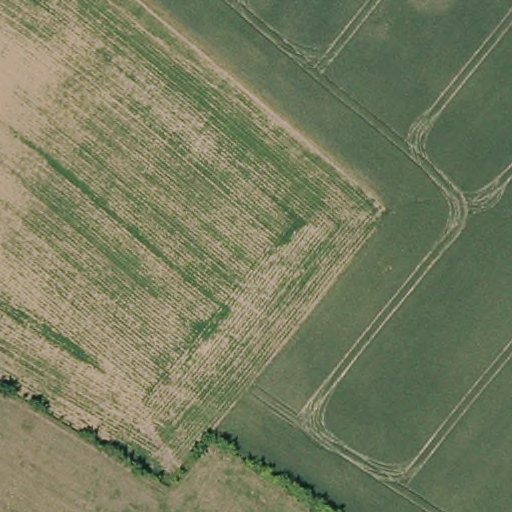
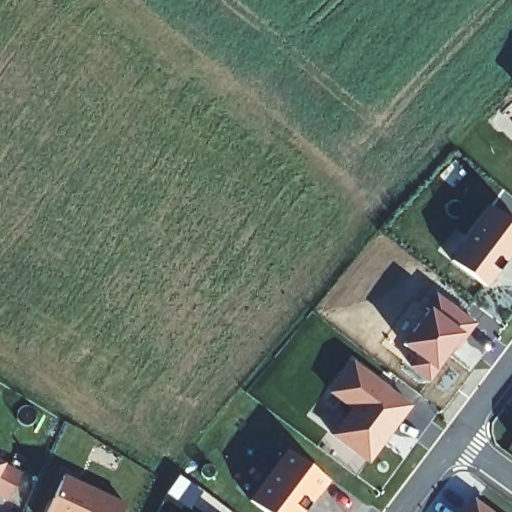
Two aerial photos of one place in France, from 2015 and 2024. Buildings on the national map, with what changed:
new [(512,223),(512,254),(487,288),(450,262),(490,207),(512,223)]
new [(473,322),(461,336),(436,370),(427,384),(408,369),(418,357),(401,344),(427,312),(423,310),(435,294),(473,322)]
new [(412,407),(368,465),(330,436),(350,410),(328,393),(353,361),(412,407)]
new [(329,480),(305,512),(266,512),(250,500),(287,450),(329,480)]
new [(20,472),(5,502),(0,499),(0,461),(5,463),(20,472)]
new [(61,480),(67,482),(70,478),(127,505),(123,512),(46,512),(61,480)]
new [(489,512),(463,512),(473,499),(489,512)]

